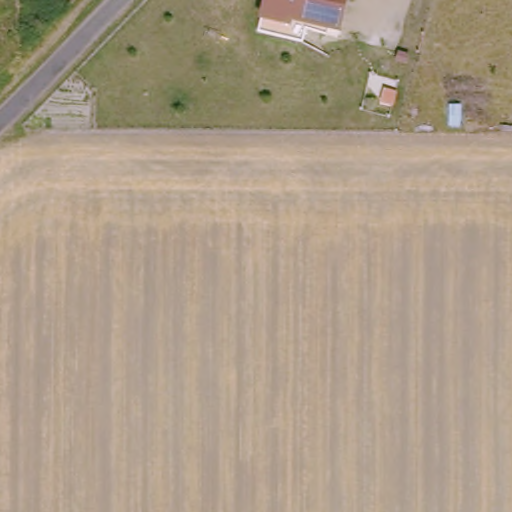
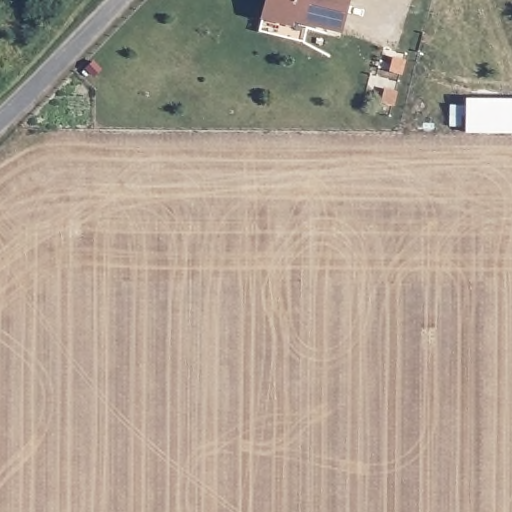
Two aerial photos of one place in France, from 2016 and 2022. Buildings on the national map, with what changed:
unchanged [(266,0),(346,0),(341,28),(309,22),(306,40),(260,32),(266,0)]
new [(512,100),(512,133),(468,132),(468,99),(512,100)]

